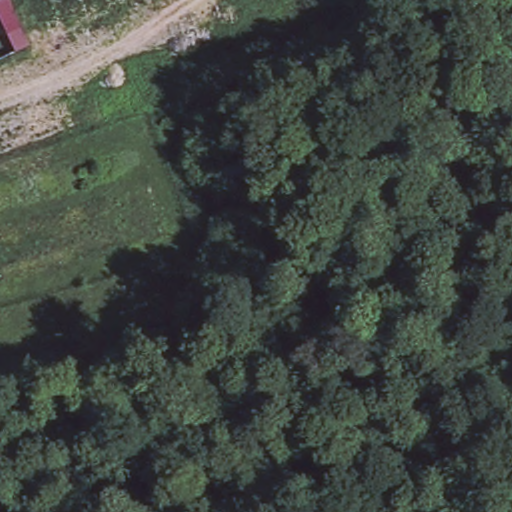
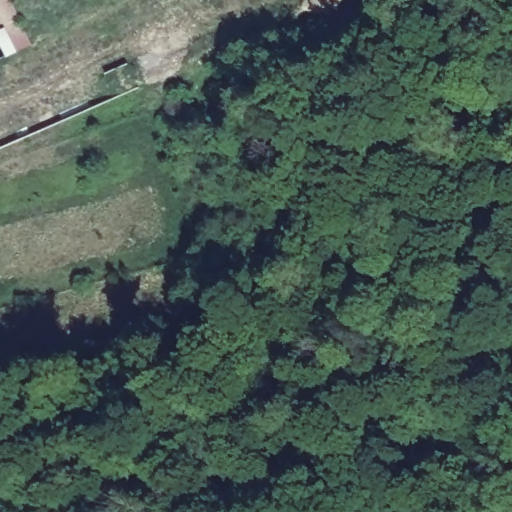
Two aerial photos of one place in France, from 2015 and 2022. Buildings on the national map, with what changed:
unchanged [(13,0),(32,40),(21,46),(0,8),(0,0),(13,0)]

